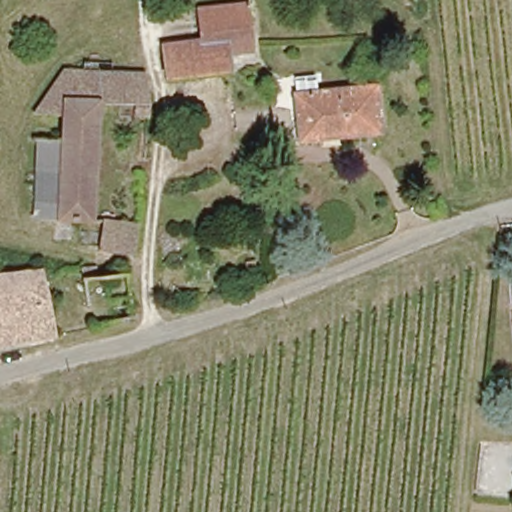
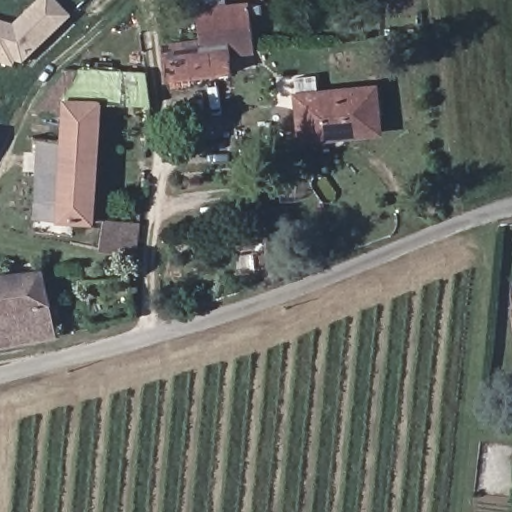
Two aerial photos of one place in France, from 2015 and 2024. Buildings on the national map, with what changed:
new [(0,63),(0,21),(13,25),(39,0),(56,0),(72,18),(22,66),(12,67),(0,63)]
unchanged [(259,50),(232,53),(234,71),(169,78),(166,41),(204,38),(200,5),(209,5),(251,1),(253,9),(259,50)]
unchanged [(58,175),(59,140),(60,115),(31,114),(62,69),(63,68),(142,71),(147,106),(146,116),(132,115),(133,102),(98,99),(90,221),(56,218),(58,175)]
unchanged [(371,85),(375,128),(300,135),(296,92),(371,85)]
unchanged [(56,218),(31,216),(33,174),(58,175),(56,218)]
unchanged [(240,227),(240,215),(250,215),(251,226),(240,227)]
unchanged [(138,222),(136,251),(120,250),(116,249),(104,248),(106,220),(123,220),(134,221),(138,222)]
unchanged [(43,270),(55,332),(0,342),(0,274),(43,270)]

